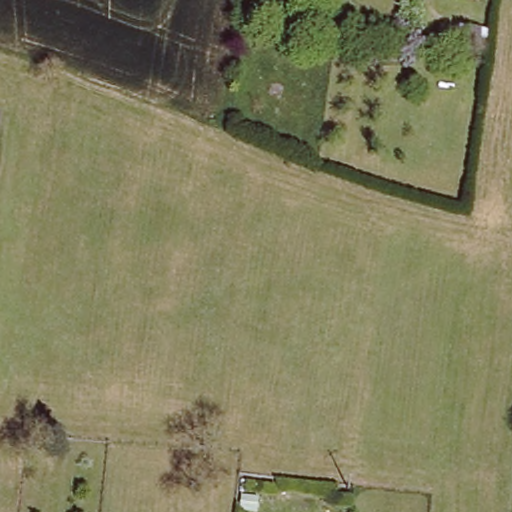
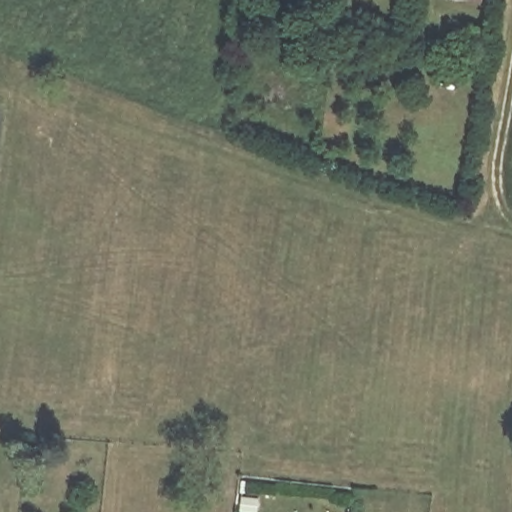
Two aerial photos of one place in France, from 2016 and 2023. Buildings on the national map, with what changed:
[]

